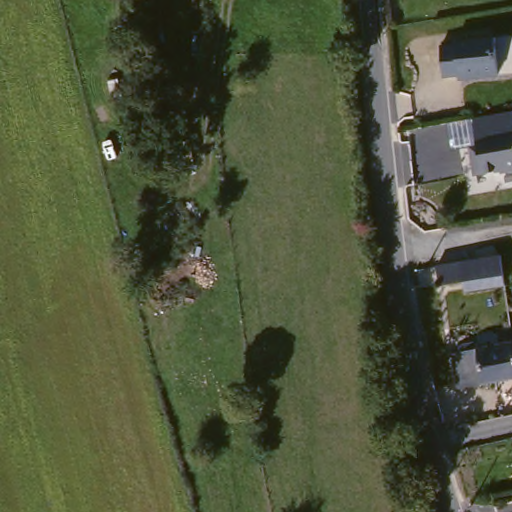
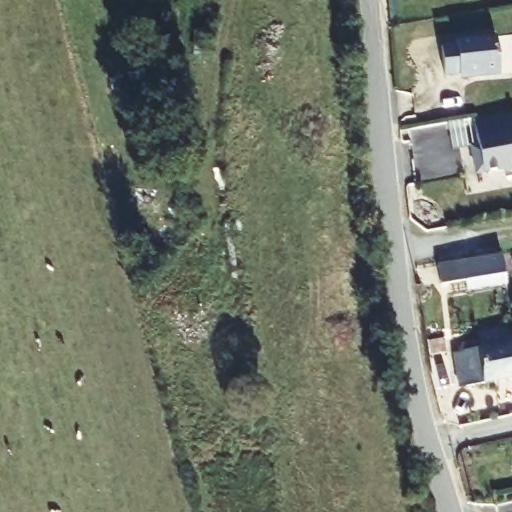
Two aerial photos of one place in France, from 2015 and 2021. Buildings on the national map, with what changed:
unchanged [(447,72),(445,42),(460,41),(460,38),(500,35),(503,72),(485,74),(485,71),(463,73),(462,71),(447,72)]
unchanged [(512,113),(512,171),(507,172),(506,170),(481,174),(477,151),(484,150),(478,119),(505,114),(512,113)]
unchanged [(460,262),(500,255),(504,287),(463,293),(462,283),(439,287),(436,266),(460,262)]
unchanged [(475,349),(498,345),(498,343),(512,340),(512,377),(481,383),(475,349)]

